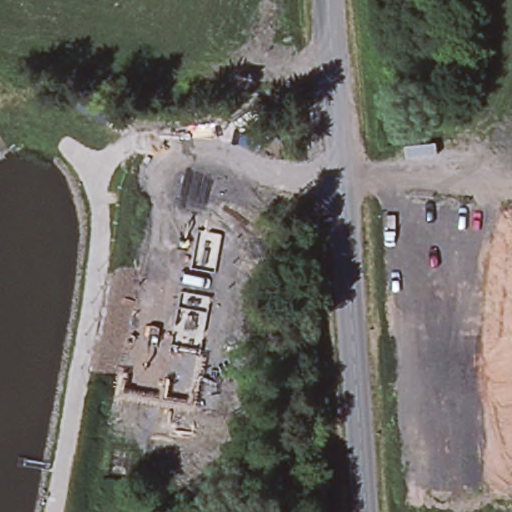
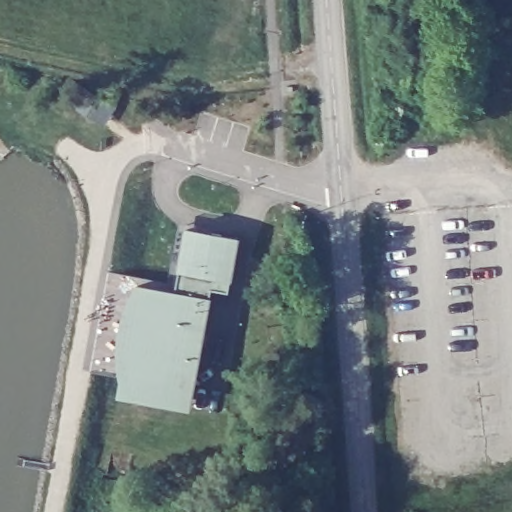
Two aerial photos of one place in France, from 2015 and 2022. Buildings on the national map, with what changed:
new [(77,96),(84,100),(109,116),(103,125),(96,121),(93,126),(75,115),(80,106),(73,102),(77,96)]
new [(121,378),(117,357),(118,336),(122,317),(128,300),(137,283),(175,288),(178,270),(186,227),(240,236),(234,278),(232,291),(214,287),(212,296),(195,409),(118,395),(121,378)]
demolished [(207,264),(199,303),(165,297),(173,257),(207,264)]

